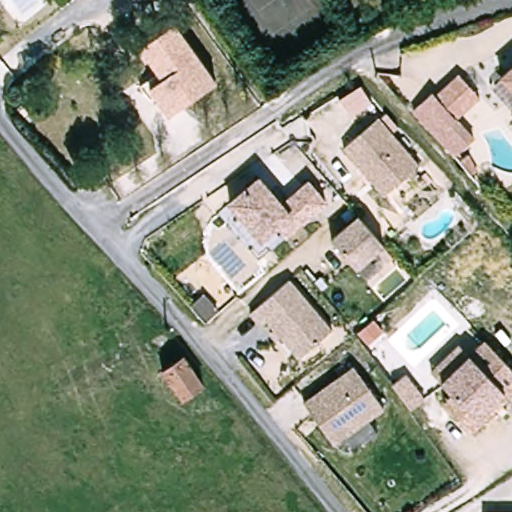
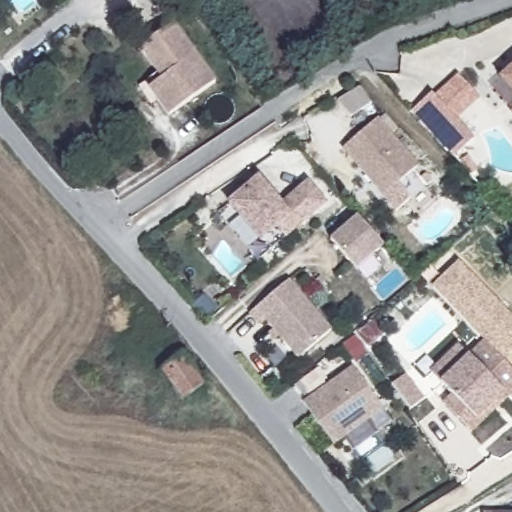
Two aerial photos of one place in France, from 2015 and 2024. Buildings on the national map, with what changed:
unchanged [(171,24),(213,83),(166,116),(143,83),(156,74),(138,48),(171,24)]
unchanged [(507,79),(512,74),(512,85),(507,79)]
unchanged [(460,76),(480,99),(455,120),(474,141),(454,159),(412,111),(432,94),(435,98),(460,76)]
unchanged [(354,119),(341,104),(352,94),(365,109),(354,119)]
unchanged [(379,120),(386,114),(398,128),(392,134),(420,166),(384,197),(342,149),(378,118),(379,120)]
unchanged [(467,158),(477,174),(471,178),(458,163),(467,158)]
unchanged [(281,207),(308,184),(326,204),(286,239),(276,228),(261,242),(228,205),(258,180),(281,207)]
unchanged [(353,217),(380,247),(353,271),(326,241),(353,217)]
new [(497,353),(483,339),(433,287),(459,260),(512,315),(512,351),(504,360),(497,353)]
unchanged [(284,283),(285,282),(329,332),(294,363),(261,325),(255,330),(244,318),(284,283)]
unchanged [(470,432),(443,402),(452,394),(440,381),(430,370),(458,343),(468,354),(483,339),(497,353),(512,368),(512,391),(507,396),(503,391),(475,419),(479,423),(470,432)]
unchanged [(206,385),(185,399),(165,367),(186,353),(206,385)]
unchanged [(356,366),(387,409),(336,446),(304,403),(356,366)]
new [(404,381),(423,406),(410,415),(391,390),(404,381)]

